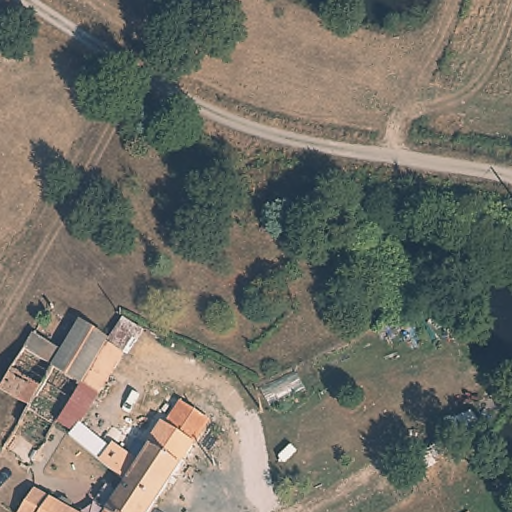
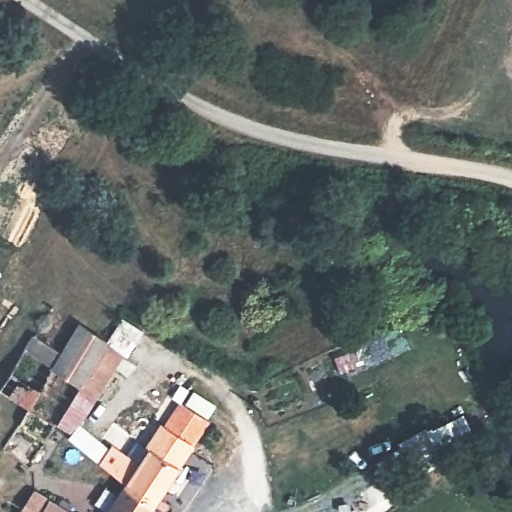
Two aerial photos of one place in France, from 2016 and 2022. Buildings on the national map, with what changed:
unchanged [(107,374),(111,376),(99,394),(86,385),(56,429),(29,410),(0,388),(36,333),(63,352),(82,322),(110,340),(122,349),(107,374)]
unchanged [(127,479),(104,463),(115,446),(140,463),(149,448),(146,446),(156,430),(161,431),(183,400),(192,404),(204,385),(216,393),(210,402),(228,414),(219,427),(208,420),(155,499),(127,479)]
unchanged [(111,512),(106,508),(127,479),(155,499),(146,512),(111,512)]
unchanged [(23,487),(30,491),(34,484),(59,501),(62,496),(70,501),(67,505),(76,512),(20,512),(11,506),(23,487)]
unchanged [(111,512),(104,512),(106,508),(111,512)]

